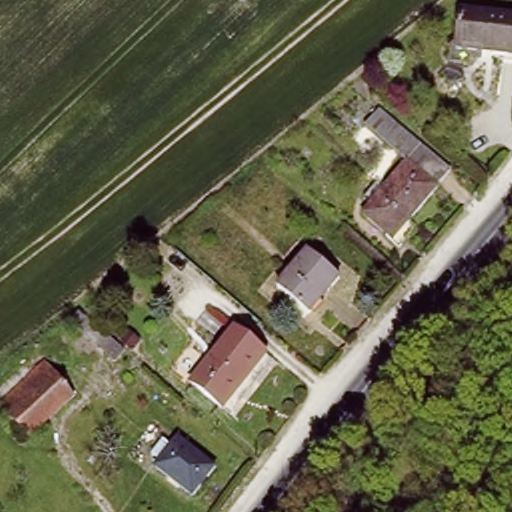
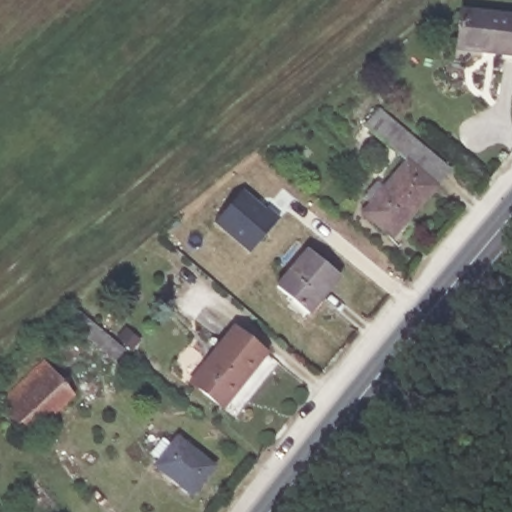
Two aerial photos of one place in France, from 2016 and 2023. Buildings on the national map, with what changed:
unchanged [(459,11),(512,17),(512,57),(455,51),(459,11)]
unchanged [(384,113),(446,175),(391,236),(363,208),(374,199),(366,191),(379,178),(385,183),(405,164),(368,127),(384,113)]
new [(250,254),(213,223),(242,189),(266,209),(268,207),(280,218),(250,254)]
unchanged [(336,280),(308,313),(272,280),(303,248),(336,280)]
unchanged [(124,365),(77,321),(90,310),(136,354),(124,365)]
unchanged [(269,355),(224,410),(188,382),(234,327),(269,355)]
unchanged [(1,408),(42,358),(75,396),(28,440),(1,408)]
unchanged [(192,493),(154,460),(157,456),(147,447),(161,432),(171,441),(178,431),(216,464),(192,493)]

